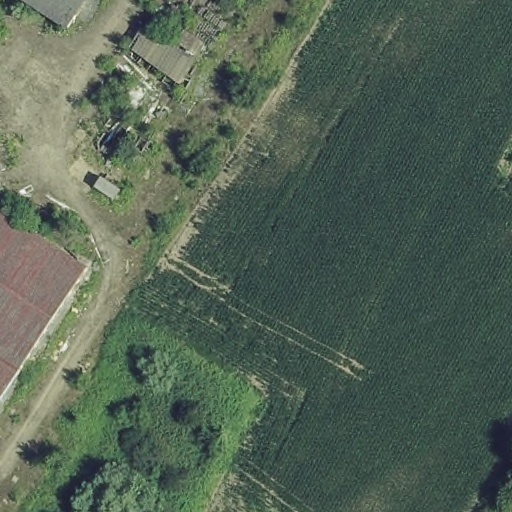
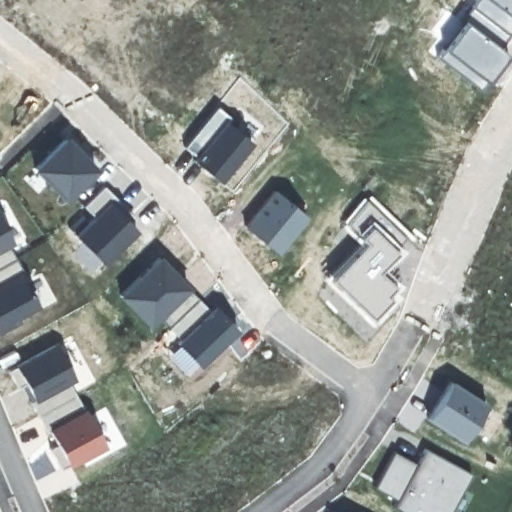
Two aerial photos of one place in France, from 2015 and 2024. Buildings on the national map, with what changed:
demolished [(14,0),(85,0),(63,32),(14,0)]
new [(512,0),(512,35),(510,37),(508,35),(502,42),(500,40),(498,43),(509,52),(480,90),(434,54),(472,0),(512,0)]
new [(216,104),(253,136),(218,180),(181,147),(216,104)]
new [(66,133),(97,166),(62,199),(30,167),(66,133)]
new [(90,214),(81,205),(103,184),(117,198),(137,227),(100,262),(72,233),(90,214)]
new [(273,186),(305,213),(275,250),(243,224),(273,186)]
new [(355,240),(337,222),(366,190),(414,236),(385,270),(401,282),(393,299),(370,323),(321,277),(355,240)]
new [(3,222),(12,241),(7,244),(0,248),(0,204),(7,220),(3,222)]
demolished [(83,276),(17,373),(0,398),(0,215),(86,270),(83,276)]
new [(20,267),(0,279),(0,248),(7,244),(20,267)]
new [(158,253),(189,285),(157,316),(148,325),(116,293),(158,253)]
new [(38,306),(0,328),(0,279),(20,267),(38,306)]
new [(189,285),(209,308),(177,338),(157,316),(189,285)]
new [(178,344),(178,343),(177,338),(209,308),(215,303),(238,327),(188,375),(168,354),(178,344)]
new [(57,340),(74,379),(70,381),(32,401),(13,363),(57,340)]
new [(449,378),(484,398),(459,438),(423,414),(449,378)]
new [(70,381),(84,406),(58,420),(55,417),(43,422),(32,401),(70,381)]
new [(55,417),(58,420),(84,406),(104,445),(65,464),(43,422),(55,417)]
new [(374,485),(393,449),(414,461),(424,446),(469,471),(446,512),(405,512),(391,504),(395,497),(374,485)]
new [(344,506),(353,512),(340,512),(344,506)]

